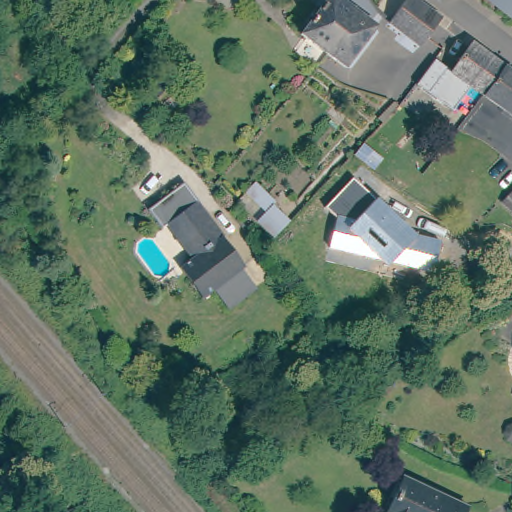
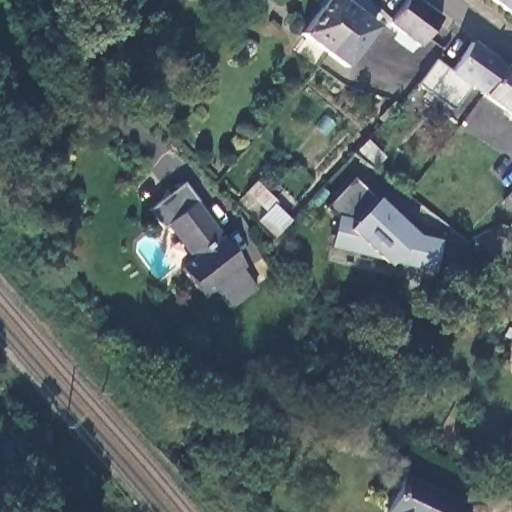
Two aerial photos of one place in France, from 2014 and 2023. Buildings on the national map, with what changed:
unchanged [(355,71),(338,56),(313,34),(342,0),(348,0),(356,7),(363,0),(377,0),(385,9),(374,23),(385,33),(355,71)]
unchanged [(431,49),(398,25),(400,23),(418,0),(423,0),(451,22),(448,27),(431,49)]
unchanged [(501,0),(512,0),(512,9),(501,0)]
unchanged [(392,7),(397,11),(392,16),(390,13),(388,11),(392,7)]
unchanged [(457,70),(477,44),(478,42),(507,64),(487,93),(457,70)]
unchanged [(145,54),(156,64),(142,81),(131,71),(145,54)]
unchanged [(508,109),(487,93),(507,64),(512,68),(512,112),(508,109)]
unchanged [(261,182),(283,204),(280,207),(292,220),(279,234),(266,221),(272,215),(250,193),(261,182)]
unchanged [(188,185),(195,194),(200,201),(196,203),(248,267),(246,268),(260,288),(227,312),(212,292),(205,297),(184,268),(198,258),(185,240),(188,238),(176,222),(166,229),(152,210),(182,189),(188,185)]
unchanged [(500,201),(505,195),(512,189),(512,213),(500,201)]
unchanged [(433,276),(329,251),(337,214),(357,218),(376,197),(413,233),(441,239),(433,276)]
unchanged [(500,236),(512,227),(512,253),(510,254),(500,236)]
unchanged [(481,512),(401,512),(420,478),(481,511),(481,512)]

